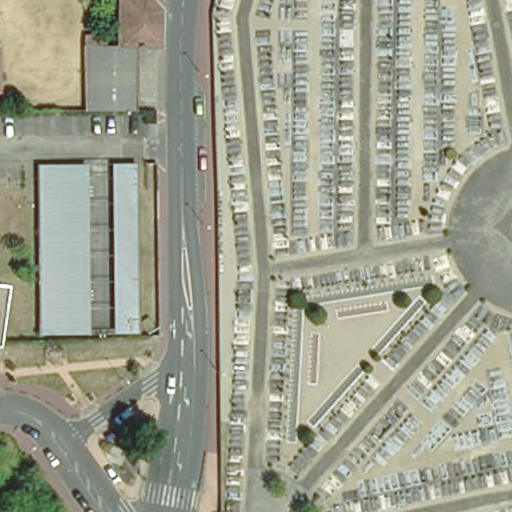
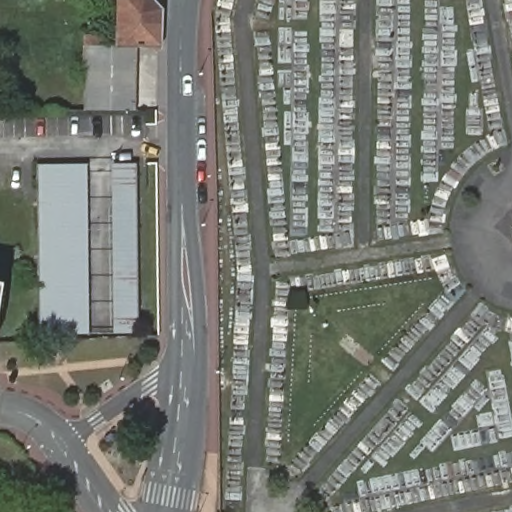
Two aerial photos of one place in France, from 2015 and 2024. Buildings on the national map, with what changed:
unchanged [(144,50),(124,51),(123,0),(156,0),(166,10),(166,50),(161,50),(157,50),(144,50)]
unchanged [(89,43),(111,43),(110,52),(124,51),(144,50),(144,114),(89,114),(89,53),(89,43)]
unchanged [(139,329),(113,330),(110,164),(135,163),(139,329)]
unchanged [(37,330),(34,188),(55,187),(54,164),(79,164),(83,330),(59,330),(37,330)]

